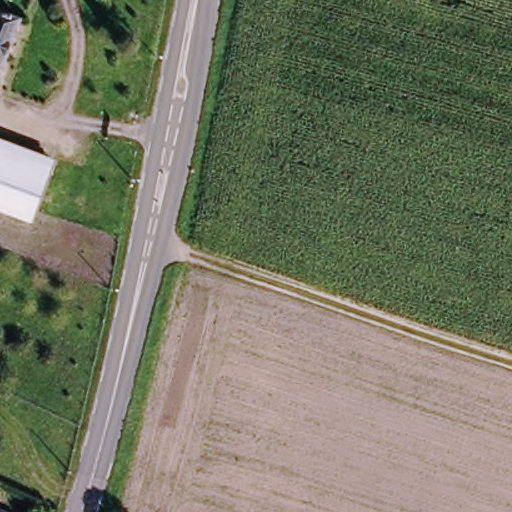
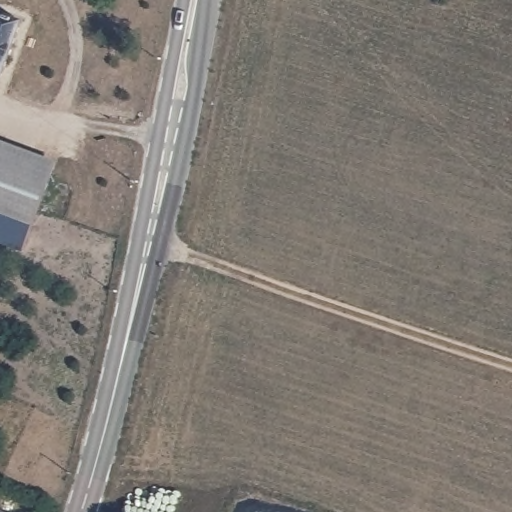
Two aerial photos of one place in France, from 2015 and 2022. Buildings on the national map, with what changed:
unchanged [(1,13),(29,26),(0,82),(0,15),(1,13)]
unchanged [(32,219),(0,206),(0,145),(57,166),(32,219)]

